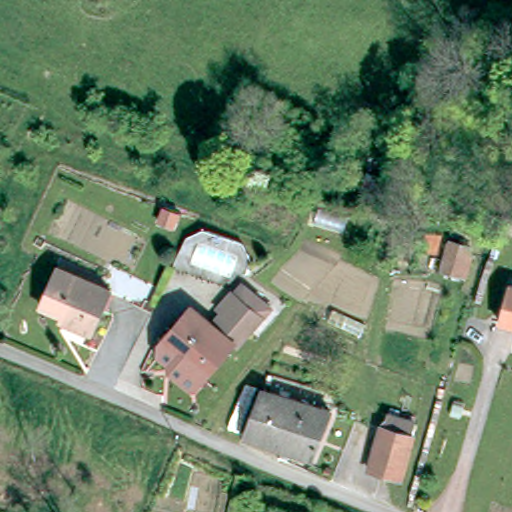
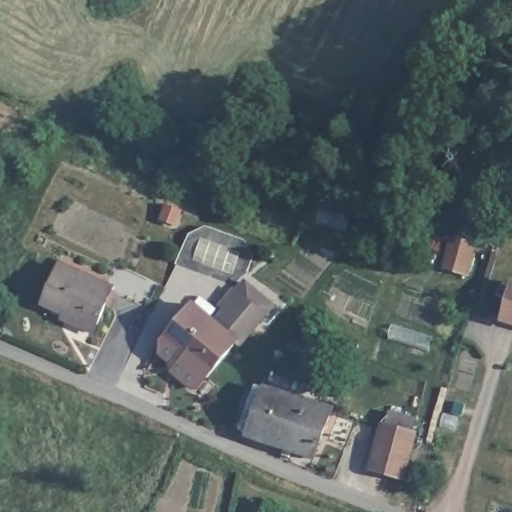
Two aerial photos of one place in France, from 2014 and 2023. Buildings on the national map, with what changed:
unchanged [(385,180),(380,196),(367,193),(370,176),(385,180)]
unchanged [(167,216),(170,209),(174,200),(188,206),(185,215),(182,222),(167,216)]
unchanged [(450,245),(470,251),(462,279),(442,273),(450,245)]
unchanged [(95,329),(73,320),(75,314),(45,301),(62,264),(65,255),(110,275),(106,283),(113,286),(95,329)]
unchanged [(165,334),(193,301),(215,320),(217,317),(216,310),(233,291),(241,282),(270,307),(262,315),(235,347),(230,344),(202,379),(187,365),(160,339),(165,334)]
unchanged [(512,328),(498,324),(509,284),(512,285),(512,328)]
unchanged [(282,452),(270,447),(274,439),(249,427),(270,383),(332,409),(313,456),(285,443),(282,452)]
unchanged [(413,432),(401,475),(367,466),(380,422),(413,432)]

